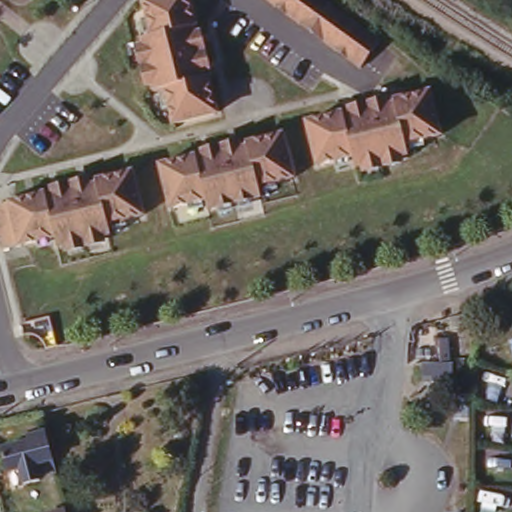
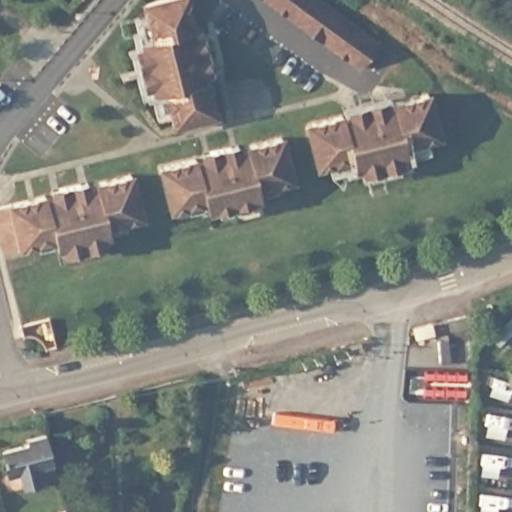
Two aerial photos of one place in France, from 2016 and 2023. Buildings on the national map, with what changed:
unchanged [(160,92),(143,95),(134,40),(144,37),(142,1),(149,0),(188,0),(215,115),(169,125),(160,92)]
unchanged [(377,35),(359,67),(264,0),(325,0),(377,35)]
unchanged [(429,90),(438,134),(402,142),(406,161),(353,174),(350,157),(312,167),(301,122),(429,90)]
unchanged [(280,134),(292,177),(257,186),(261,200),(207,213),(204,201),(166,208),(156,164),(280,134)]
unchanged [(5,204),(131,173),(143,218),(105,226),(108,241),(56,255),(54,234),(13,247),(1,249),(0,242),(0,204),(5,204)]
unchanged [(440,339),(442,363),(431,365),(428,341),(440,339)]
unchanged [(0,480),(0,447),(12,444),(11,437),(36,432),(43,459),(48,477),(32,481),(28,470),(20,472),(21,475),(0,480)]

